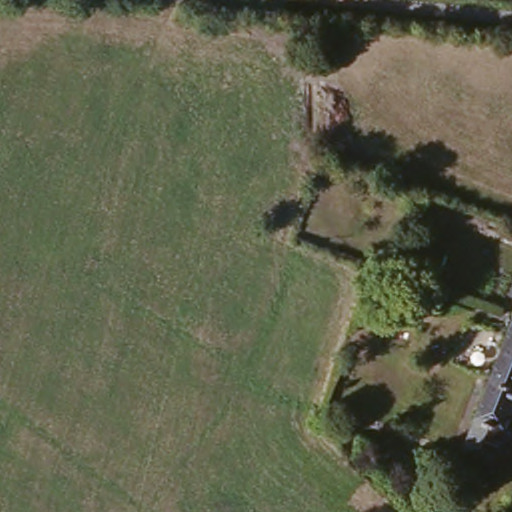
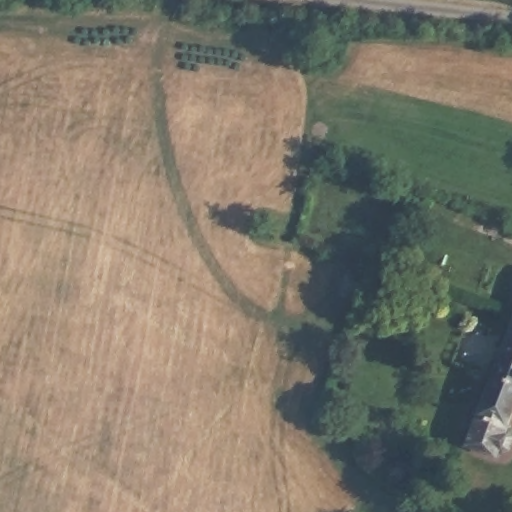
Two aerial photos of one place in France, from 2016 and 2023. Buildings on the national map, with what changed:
unchanged [(511,420),(512,422),(512,437),(509,444),(502,441),(496,450),(469,435),(478,416),(485,400),(494,377),(506,348),(512,334),(512,417),(511,420)]

